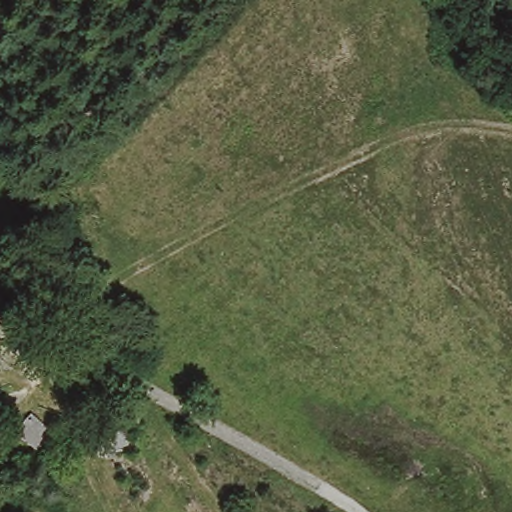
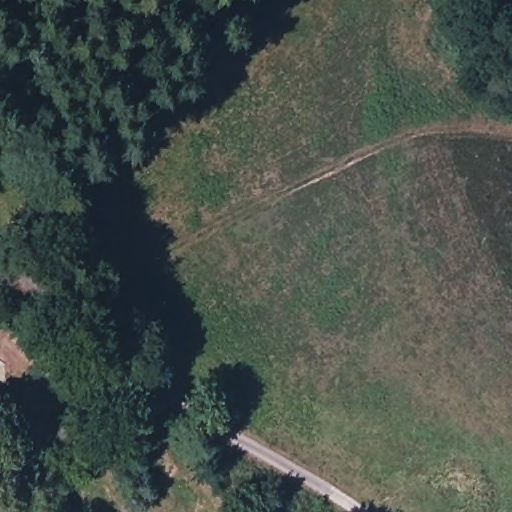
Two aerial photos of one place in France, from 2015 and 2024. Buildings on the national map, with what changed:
unchanged [(128,439),(101,452),(93,432),(119,419),(128,439)]
unchanged [(33,455),(9,435),(21,422),(45,443),(33,455)]

